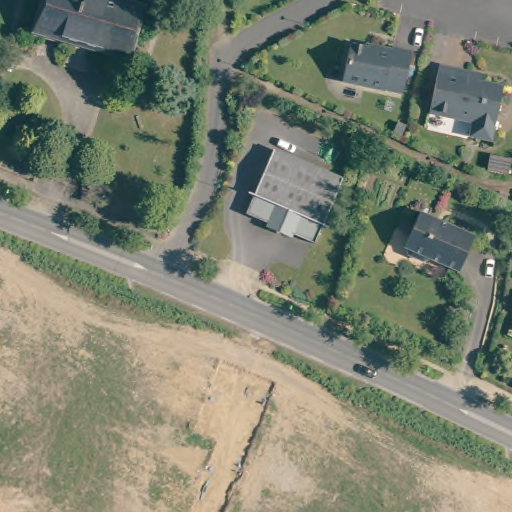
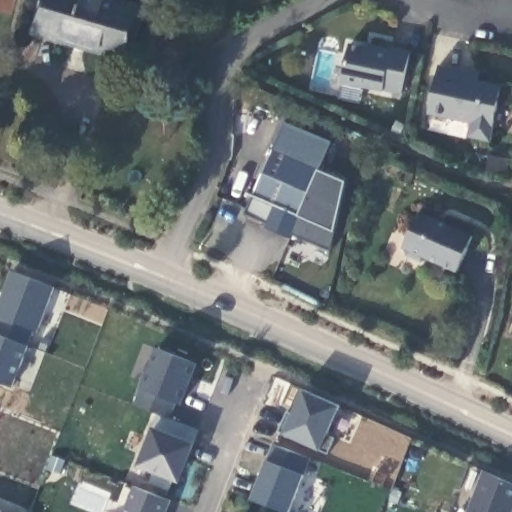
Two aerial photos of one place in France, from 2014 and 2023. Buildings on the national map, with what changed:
unchanged [(43,29),(50,0),(133,0),(143,3),(131,51),(43,29)]
unchanged [(380,53),(381,49),(396,54),(397,51),(417,56),(406,97),(388,93),(387,95),(347,85),(356,46),(380,53)]
unchanged [(472,76),(470,84),(505,93),(492,145),(471,140),(474,127),(431,116),(442,69),(472,76)]
unchanged [(295,234),(292,229),(272,222),(270,223),(247,213),(276,149),(343,180),(315,243),(295,234)]
unchanged [(458,269),(432,259),(429,259),(422,260),(416,259),(410,255),(405,244),(421,212),(473,234),(458,269)]
new [(0,319),(1,318),(0,317),(0,304),(12,271),(52,288),(36,331),(31,329),(26,344),(0,335),(0,319)]
new [(15,389),(0,383),(0,335),(26,344),(31,346),(15,389)]
new [(184,406),(177,404),(171,419),(158,415),(135,405),(156,346),(200,364),(184,406)]
new [(330,434),(338,437),(330,456),(322,451),(283,434),(303,389),(342,407),(330,434)]
new [(152,482),(156,472),(141,465),(155,429),(158,415),(198,429),(193,444),(179,480),(174,479),(170,489),(152,482)]
new [(292,512),(285,512),(251,499),(266,460),(272,443),(312,459),(307,475),(292,512)]
new [(483,473),(512,484),(512,512),(468,512),(483,473)]
unchanged [(135,488),(171,502),(166,512),(125,512),(135,488)]

